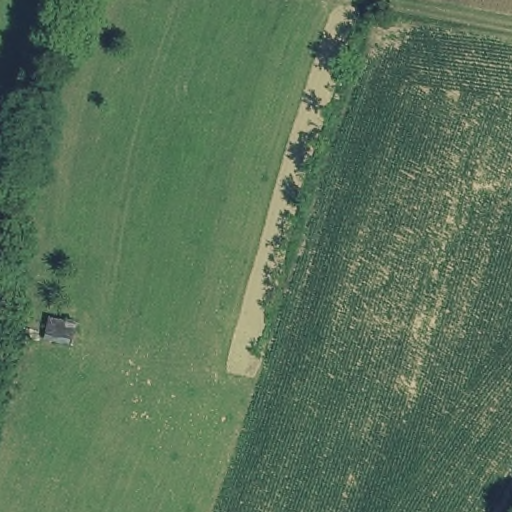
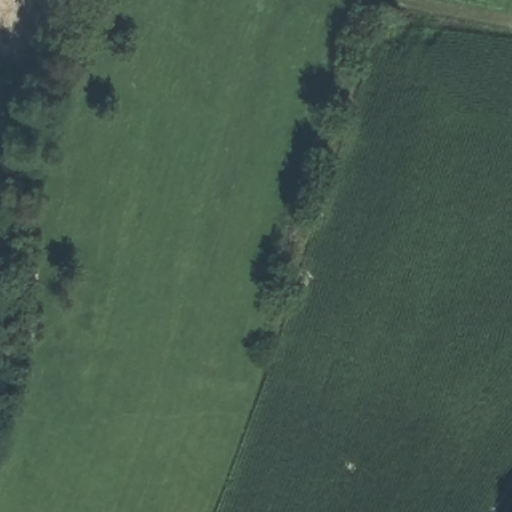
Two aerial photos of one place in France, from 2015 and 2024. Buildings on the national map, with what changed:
unchanged [(47,337),(52,312),(83,317),(78,345),(47,337)]

